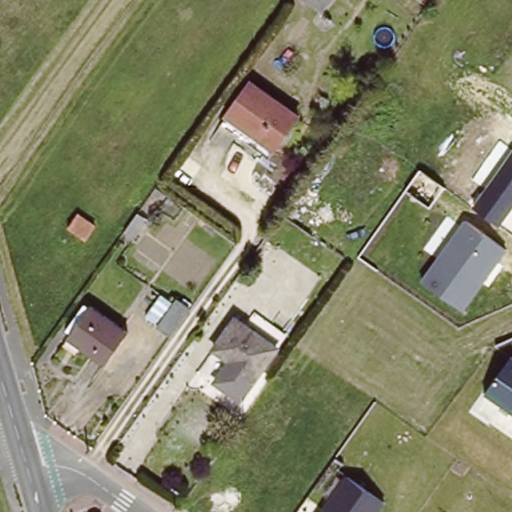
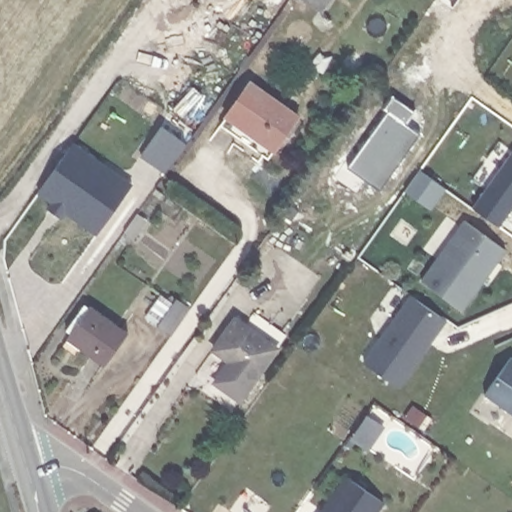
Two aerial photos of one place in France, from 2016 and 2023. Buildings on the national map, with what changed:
unchanged [(331,0),(322,12),(305,0),(331,0)]
unchanged [(294,168),(287,163),(227,118),(252,81),(315,124),(321,129),(294,168)]
new [(347,167),(387,112),(382,109),(393,95),(415,111),(407,124),(421,134),(380,191),(347,167)]
new [(167,173),(141,156),(160,126),(187,143),(167,173)]
new [(67,213),(64,218),(47,207),(51,202),(39,193),(74,143),(131,184),(97,235),(67,213)]
unchanged [(499,226),(471,206),(512,148),(512,209),(499,226)]
new [(420,171),(444,189),(429,210),(405,192),(420,171)]
demolished [(94,227),(84,241),(67,230),(77,216),(94,227)]
unchanged [(418,278),(460,217),(507,251),(462,308),(418,278)]
demolished [(113,261),(88,296),(81,291),(106,256),(113,261)]
new [(364,362),(410,298),(447,323),(402,388),(364,362)]
unchanged [(156,324),(172,302),(187,313),(171,335),(156,324)]
unchanged [(100,312),(131,336),(109,366),(77,342),(100,312)]
unchanged [(280,349),(236,406),(209,384),(225,363),(207,348),(235,314),(280,349)]
unchanged [(482,392),(512,353),(512,413),(482,392)]
unchanged [(384,502),(378,512),(318,512),(344,474),(384,502)]

